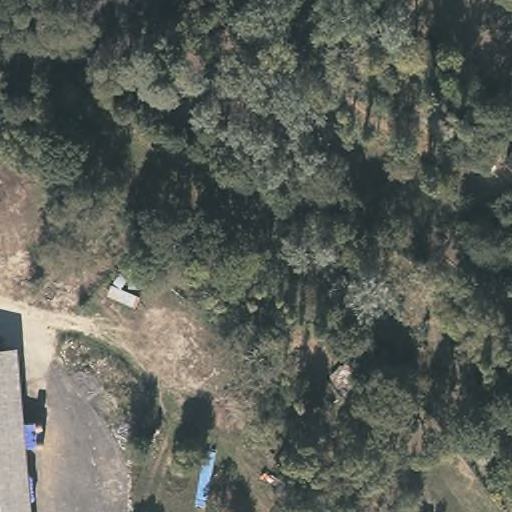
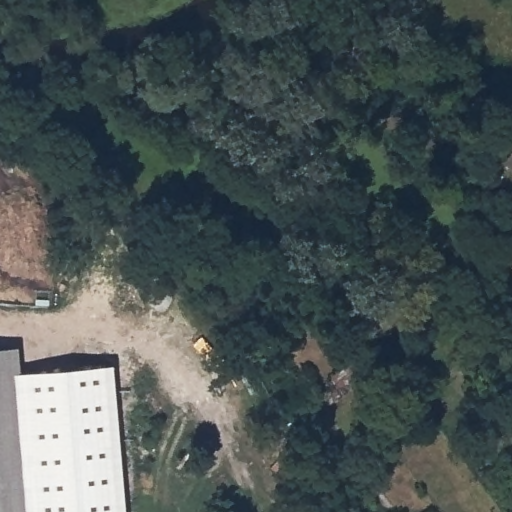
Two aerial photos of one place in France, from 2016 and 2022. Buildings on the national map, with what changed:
unchanged [(512,152),(512,159),(509,156),(512,152)]
unchanged [(15,346),(30,512),(0,512),(0,347),(15,346)]
new [(17,371),(112,363),(125,512),(31,512),(17,371)]

